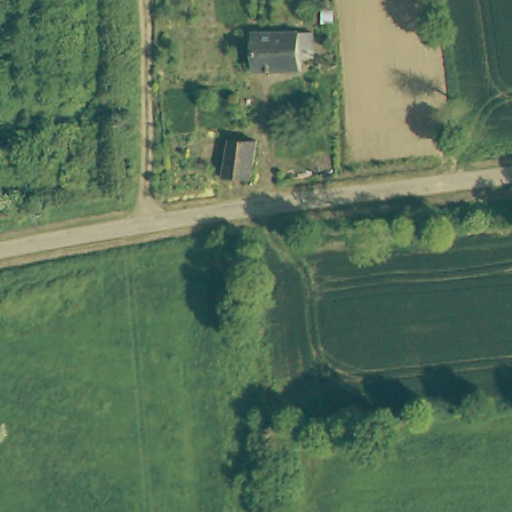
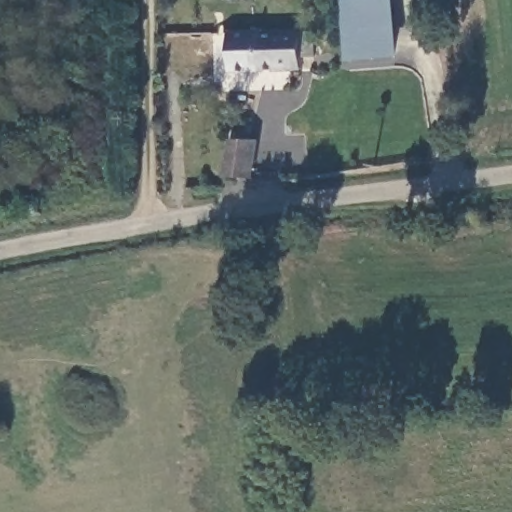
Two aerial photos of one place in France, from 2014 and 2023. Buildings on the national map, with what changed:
new [(346,61),(341,0),(396,0),(400,56),(346,61)]
unchanged [(227,31),(253,30),(310,29),(310,54),(299,54),(300,68),(254,69),(228,70),(227,31)]
unchanged [(247,138),(248,132),(253,183),(230,185),(226,140),(247,138)]

